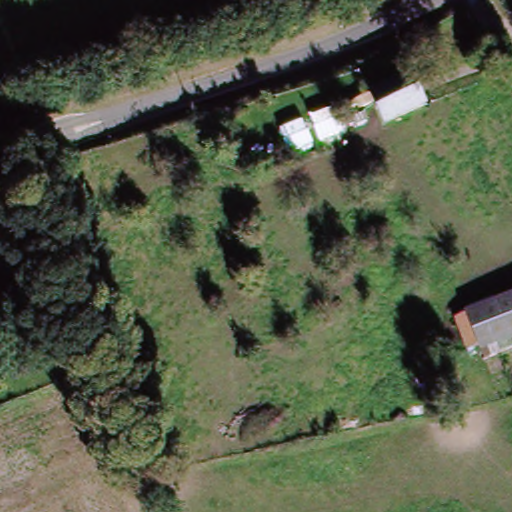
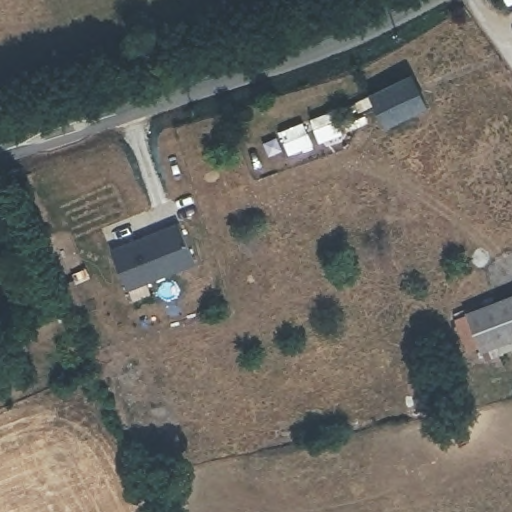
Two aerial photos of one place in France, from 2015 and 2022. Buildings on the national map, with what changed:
unchanged [(363,98),(400,74),(420,102),(383,126),(363,98)]
new [(197,262),(127,291),(110,248),(177,221),(197,262)]
unchanged [(457,326),(512,302),(512,334),(468,353),(457,326)]

